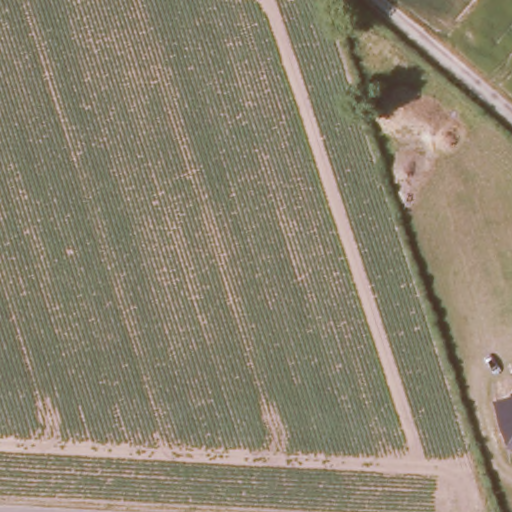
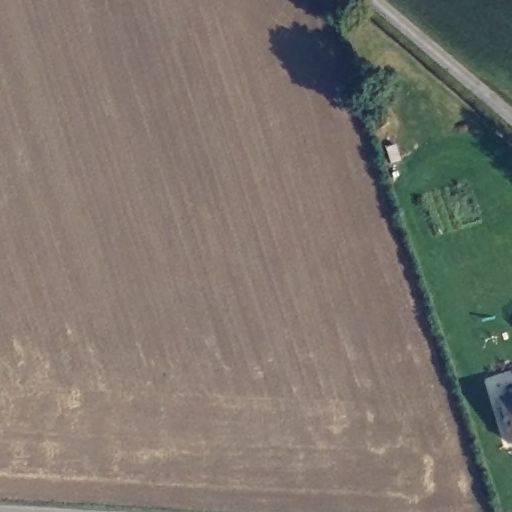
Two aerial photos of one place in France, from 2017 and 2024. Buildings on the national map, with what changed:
unchanged [(512,393),(512,448),(507,445),(494,399),(512,393)]

